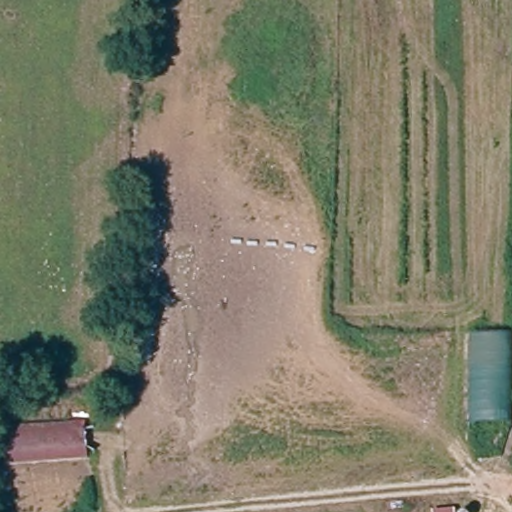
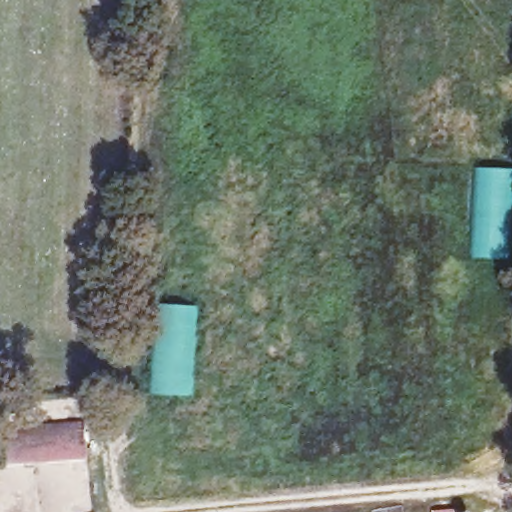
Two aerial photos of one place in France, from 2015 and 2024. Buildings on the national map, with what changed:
new [(473,168),(512,168),(512,257),(471,256),(473,168)]
new [(152,394),(157,305),(197,306),(192,395),(152,394)]
demolished [(512,449),(471,449),(472,334),(512,334),(512,449)]
unchanged [(5,427),(87,420),(87,453),(10,458),(5,427)]

